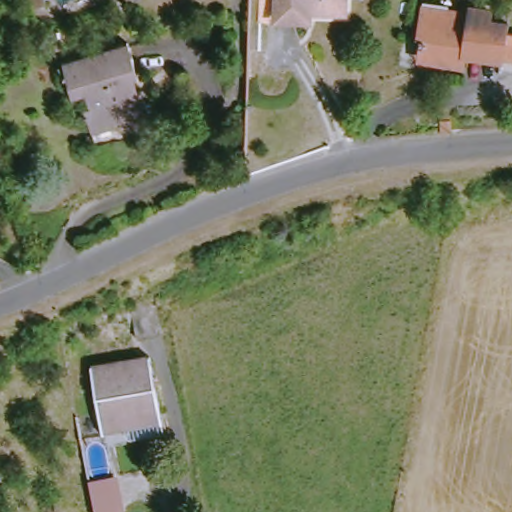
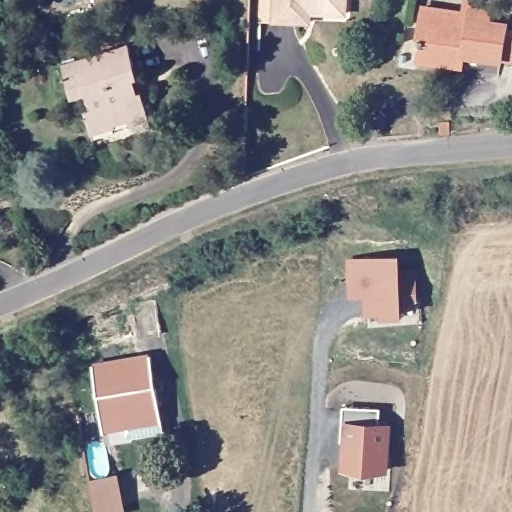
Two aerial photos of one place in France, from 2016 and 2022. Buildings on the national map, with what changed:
unchanged [(357,15),(322,15),(322,24),(285,24),(285,0),(357,0),(357,15)]
unchanged [(441,63),(441,60),(427,58),(427,61),(409,59),(411,38),(425,39),(427,14),(447,16),(447,12),(469,15),(479,17),(479,11),(495,13),(501,15),(501,23),(512,24),(512,60),(509,60),(487,56),(476,54),(473,68),(464,66),(441,63)]
unchanged [(142,91),(149,90),(156,113),(135,118),(134,114),(122,117),(122,123),(100,129),(92,105),(97,104),(92,89),(80,92),(70,64),(135,47),(144,75),(139,77),(142,91)]
new [(347,261),(400,256),(401,270),(416,270),(419,303),(402,303),(404,317),(382,319),(382,314),(366,314),(365,297),(349,299),(347,261)]
unchanged [(152,286),(158,321),(132,326),(126,292),(152,286)]
unchanged [(109,422),(96,367),(153,353),(166,408),(171,428),(139,436),(135,435),(135,433),(112,439),(109,422)]
new [(343,443),(341,442),(342,408),(381,410),(380,425),(392,425),(390,473),(342,472),(343,443)]
unchanged [(127,511),(121,512),(100,512),(93,481),(119,475),(127,511)]

